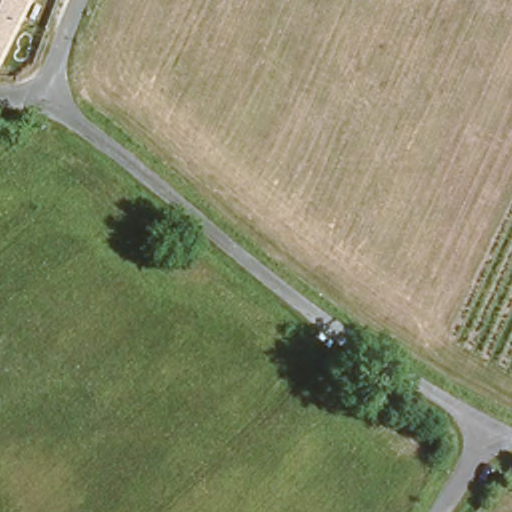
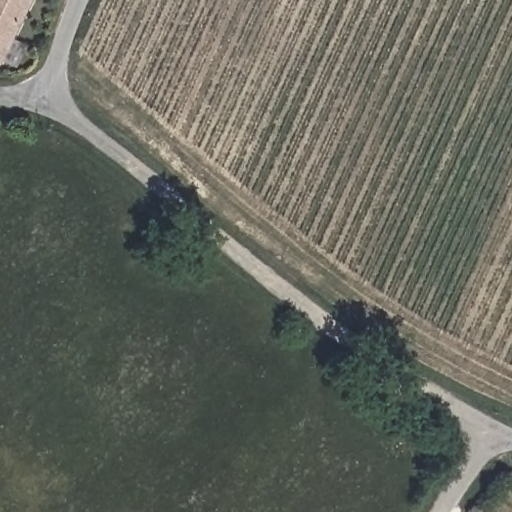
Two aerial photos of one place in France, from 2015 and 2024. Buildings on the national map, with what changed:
unchanged [(18,0),(0,38),(0,0),(18,0)]

